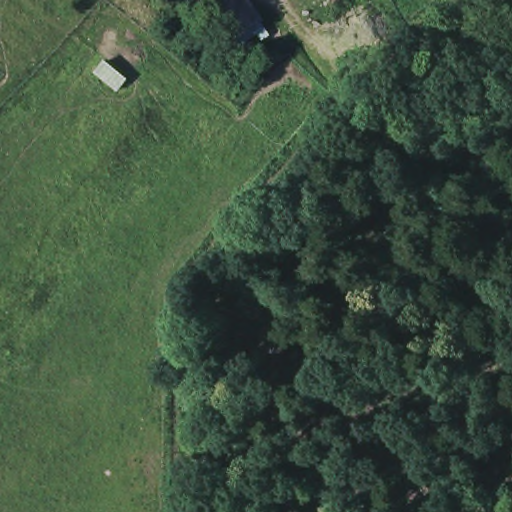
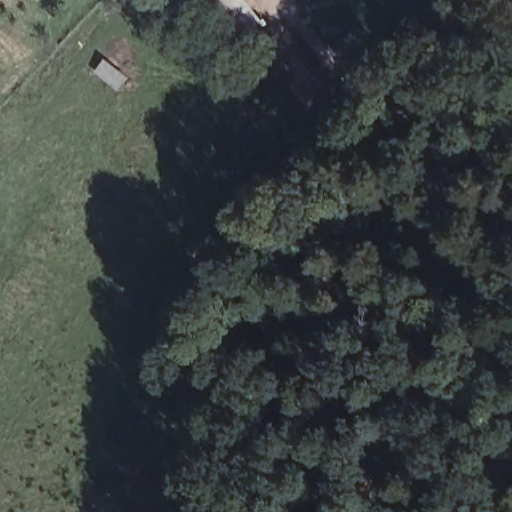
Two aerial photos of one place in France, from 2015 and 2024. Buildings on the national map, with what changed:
unchanged [(239,41),(208,0),(253,0),(267,17),(239,41)]

